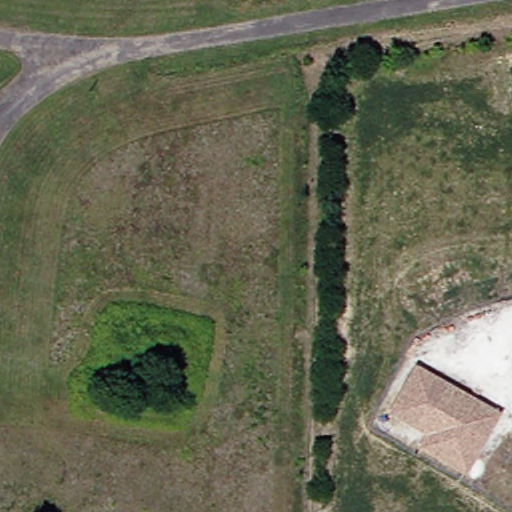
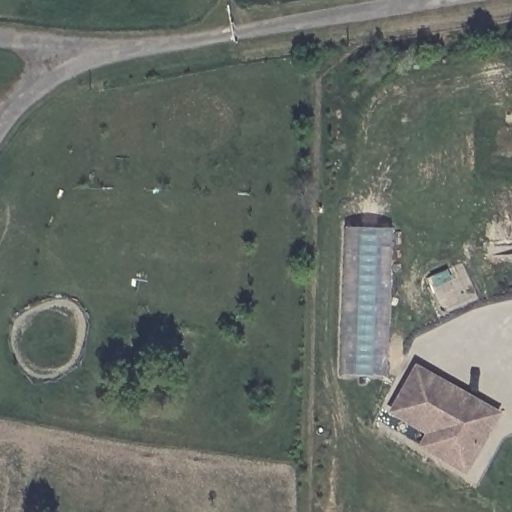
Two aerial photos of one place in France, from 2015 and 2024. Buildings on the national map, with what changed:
new [(384,374),(340,374),(346,228),(393,229),(384,374)]
unchanged [(469,467),(421,446),(429,431),(391,409),(418,363),(503,409),(469,467)]

